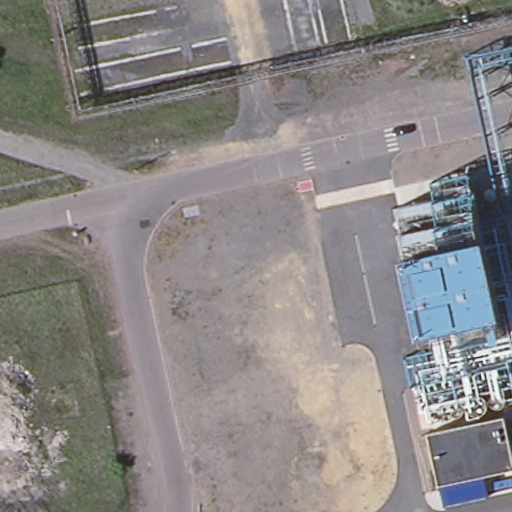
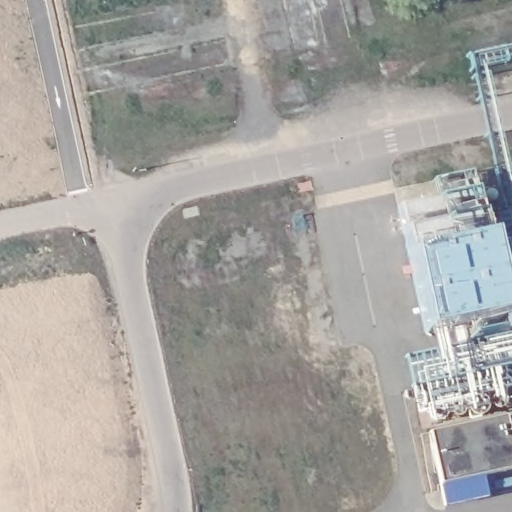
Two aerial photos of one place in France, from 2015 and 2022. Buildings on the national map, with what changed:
unchanged [(409,253),(406,232),(398,205),(440,197),(435,181),(472,171),(475,188),(482,212),(489,237),(505,317),(426,335),(409,253)]
unchanged [(507,416),(512,440),(512,468),(482,476),(487,500),(446,507),(440,486),(428,433),(507,416)]

